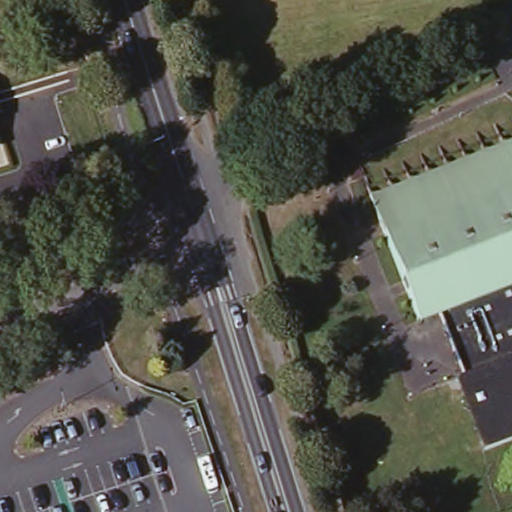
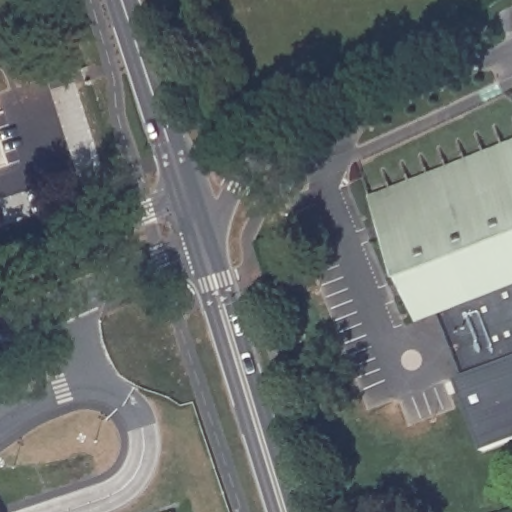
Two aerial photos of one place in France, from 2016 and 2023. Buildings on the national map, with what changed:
unchanged [(459,374),(466,371),(440,307),(420,315),(375,199),(512,145),(512,437),(487,446),(459,374)]

